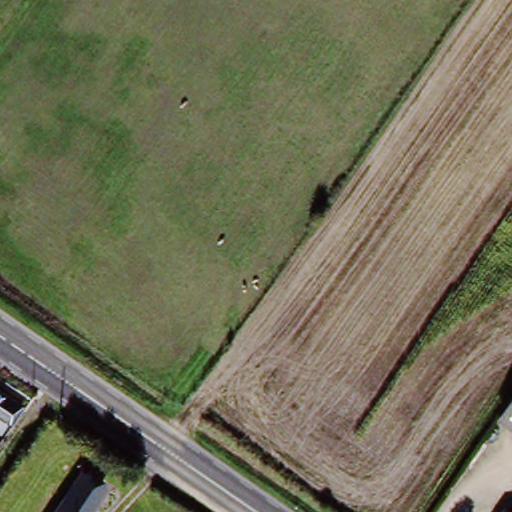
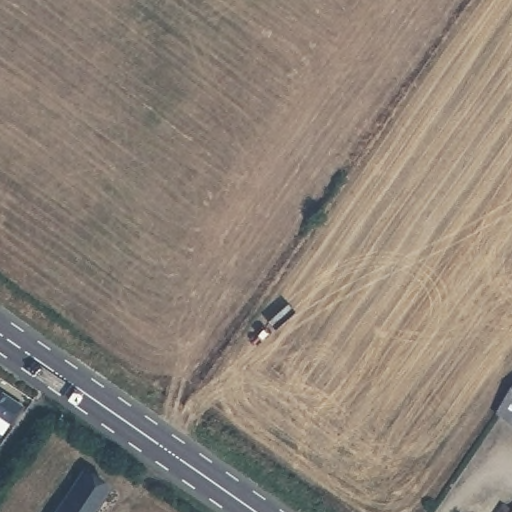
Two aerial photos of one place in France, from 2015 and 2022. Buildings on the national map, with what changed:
unchanged [(2,422),(0,421),(0,394),(13,404),(2,422)]
unchanged [(512,401),(512,431),(498,422),(512,401)]
unchanged [(82,471),(102,485),(84,512),(54,512),(82,471)]

